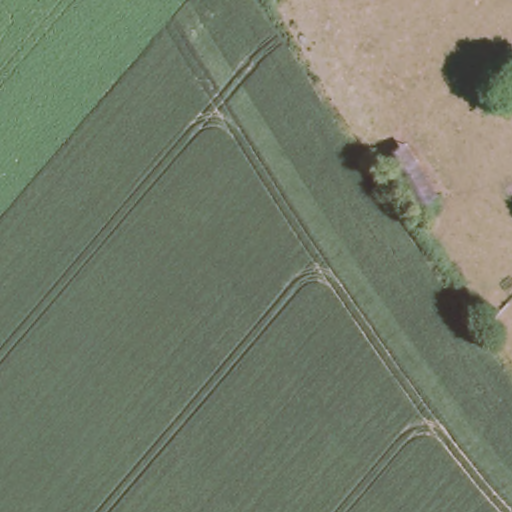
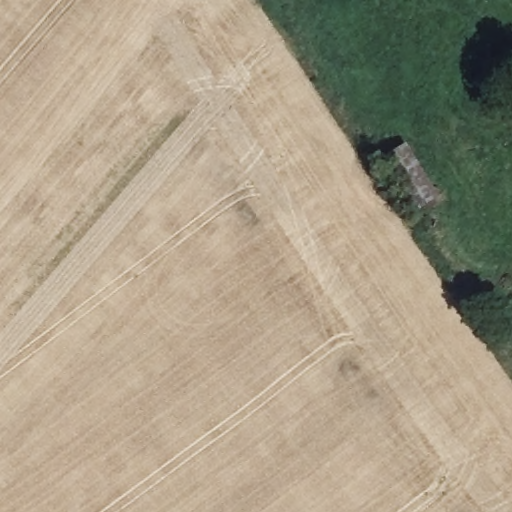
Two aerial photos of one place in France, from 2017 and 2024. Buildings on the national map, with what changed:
unchanged [(433,188),(405,204),(374,151),(403,139),(433,188)]

